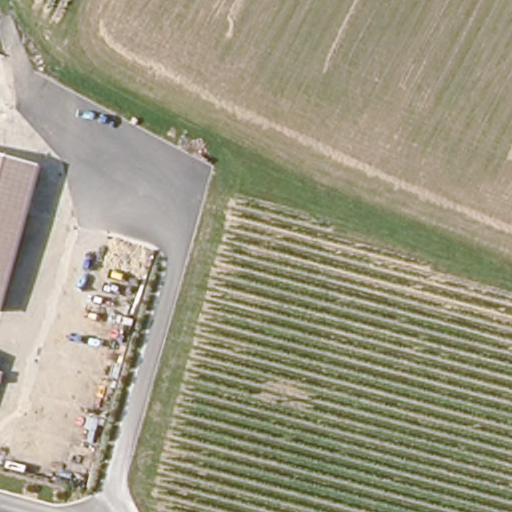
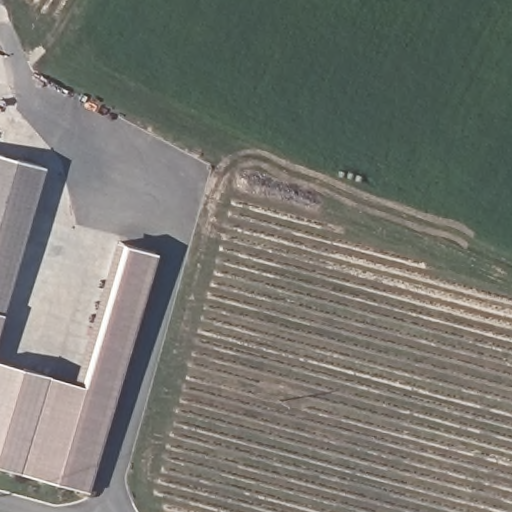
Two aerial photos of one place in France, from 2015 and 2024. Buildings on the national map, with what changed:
unchanged [(1,308),(0,308),(0,153),(39,166),(1,308)]
new [(45,375),(72,382),(112,240),(120,242),(154,252),(87,492),(17,472),(0,468),(0,364),(45,375)]
new [(1,308),(0,312),(0,308),(1,308)]

